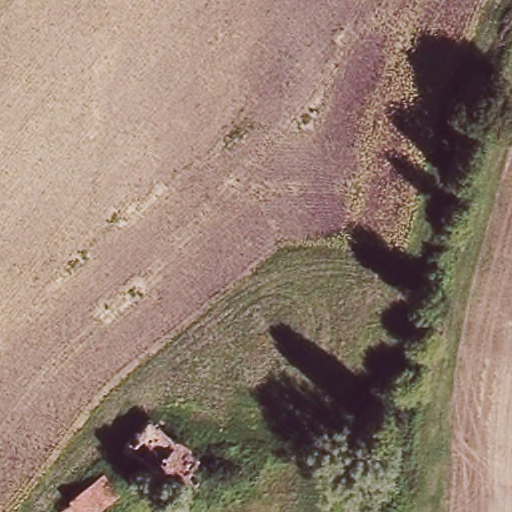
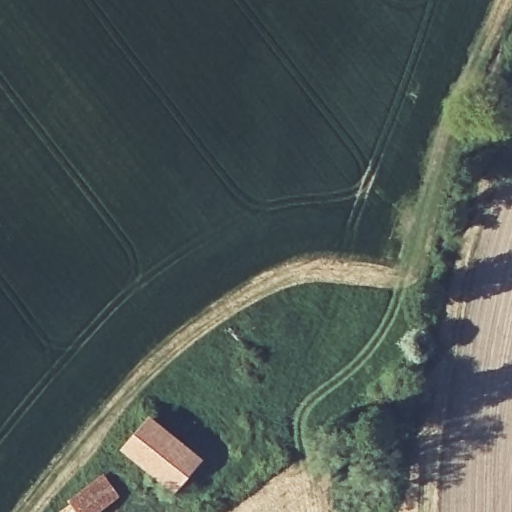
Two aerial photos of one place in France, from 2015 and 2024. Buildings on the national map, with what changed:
new [(150,413),(204,456),(174,493),(119,447),(150,413)]
unchanged [(116,495),(95,512),(60,512),(103,478),(116,495)]

